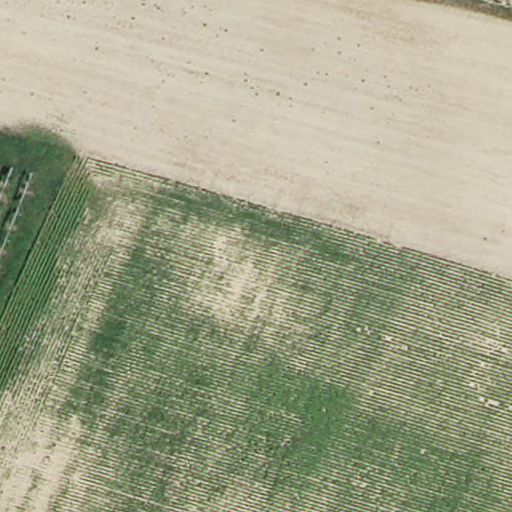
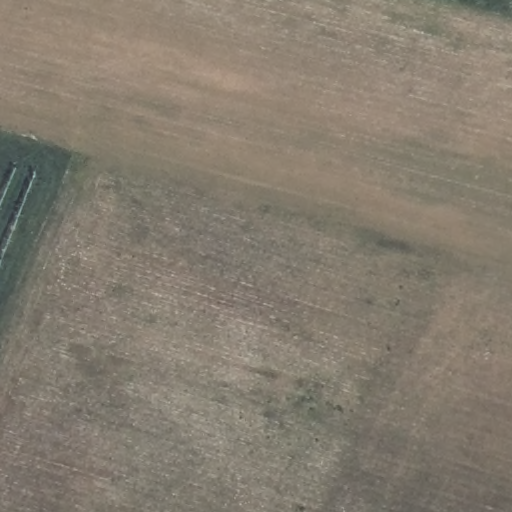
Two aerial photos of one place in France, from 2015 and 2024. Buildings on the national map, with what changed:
[]

